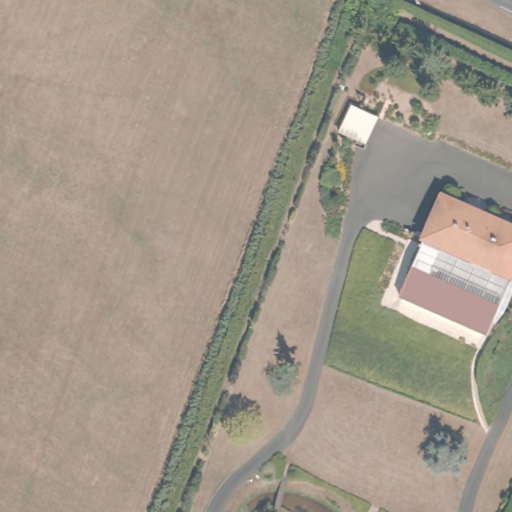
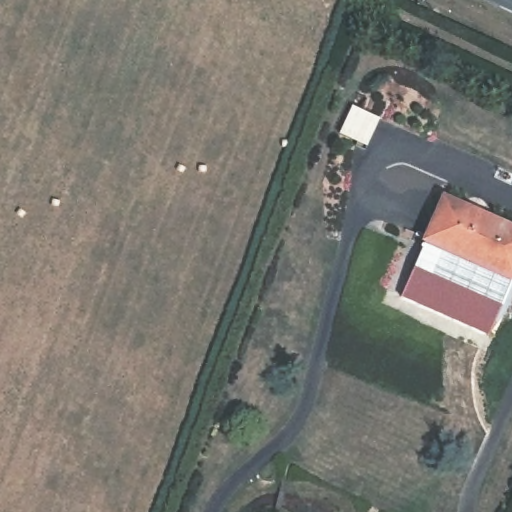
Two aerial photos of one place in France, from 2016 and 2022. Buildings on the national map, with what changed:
unchanged [(366,145),(337,131),(351,102),(379,116),(366,145)]
unchanged [(512,280),(427,242),(445,201),(512,231),(512,280)]
unchanged [(512,280),(512,285),(488,340),(398,301),(427,242),(512,280)]

